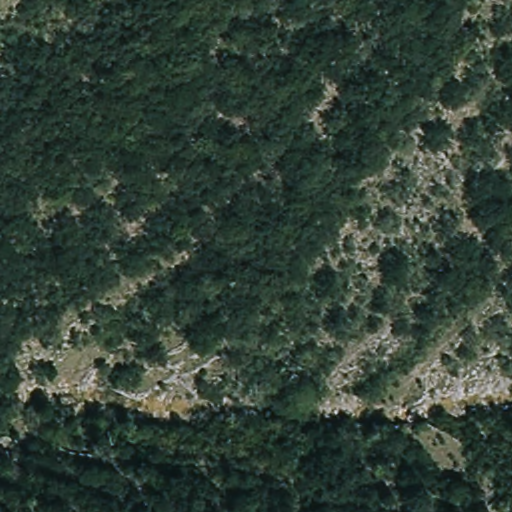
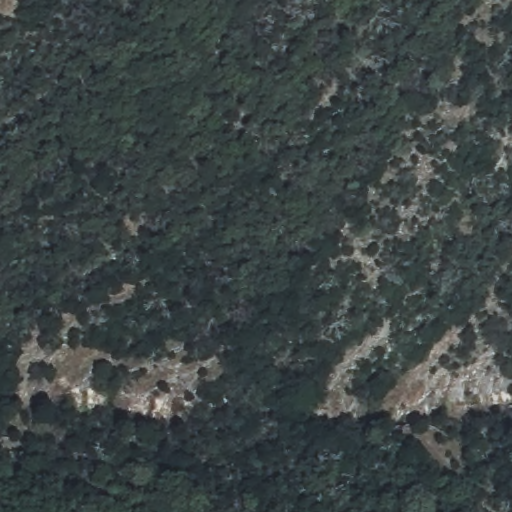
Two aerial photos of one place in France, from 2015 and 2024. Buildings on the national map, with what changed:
[]

